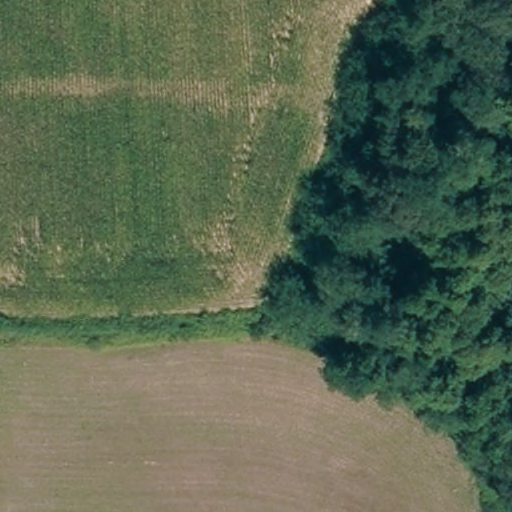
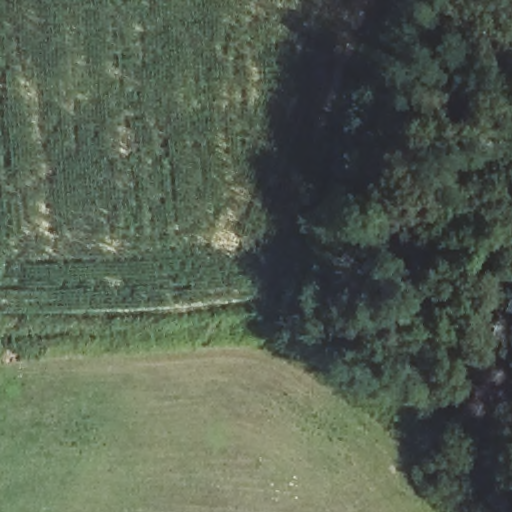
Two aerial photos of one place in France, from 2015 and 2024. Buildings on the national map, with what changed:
[]

